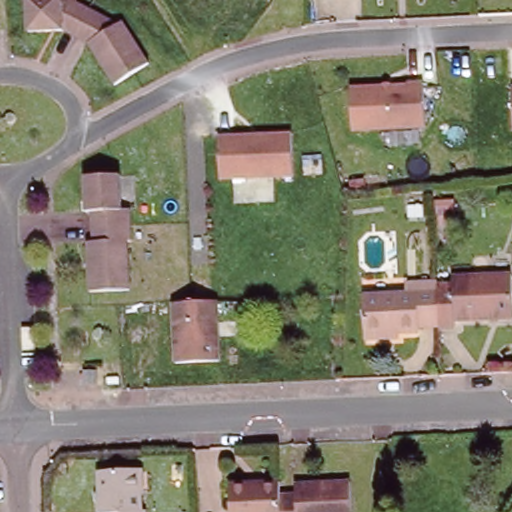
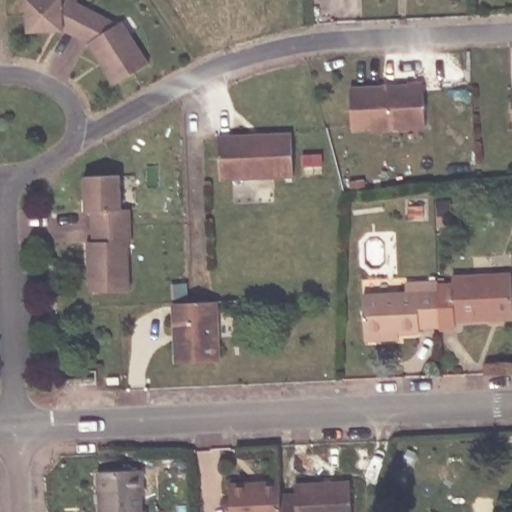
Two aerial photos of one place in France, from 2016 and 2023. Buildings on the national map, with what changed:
unchanged [(118,19),(126,33),(131,29),(149,58),(115,81),(87,41),(62,27),(27,27),(25,0),(79,0),(89,4),(118,19)]
unchanged [(404,89),(404,86),(419,85),(422,132),(350,135),(347,92),(404,89)]
unchanged [(512,86),(512,129),(510,86),(512,86)]
unchanged [(295,175),(223,180),(221,139),(293,134),(295,175)]
unchanged [(117,177),(119,211),(127,210),(130,242),(126,242),(128,291),(86,293),(84,243),(90,243),(89,229),(89,214),(83,214),(81,177),(117,177)]
unchanged [(445,200),(446,214),(432,214),(428,214),(427,201),(432,201),(445,200)]
unchanged [(452,275),(511,272),(512,299),(512,317),(456,319),(456,326),(442,326),(442,324),(440,282),(453,282),(452,275)]
unchanged [(386,336),(366,337),(364,292),(405,291),(405,279),(415,279),(440,279),(440,282),(442,324),(422,324),(421,329),(412,329),(399,329),(399,336),(386,336)]
unchanged [(189,302),(215,300),(218,360),(175,361),(172,303),(189,302)]
unchanged [(93,372),(93,385),(81,385),(81,373),(93,372)]
unchanged [(98,377),(108,377),(109,391),(98,391),(98,377)]
unchanged [(97,473),(137,471),(138,509),(143,509),(143,512),(99,512),(97,473)]
unchanged [(229,478),(281,474),(282,488),(282,512),(230,512),(229,478)]
unchanged [(298,488),(297,479),(352,476),(354,512),(282,512),(282,488),(298,488)]

